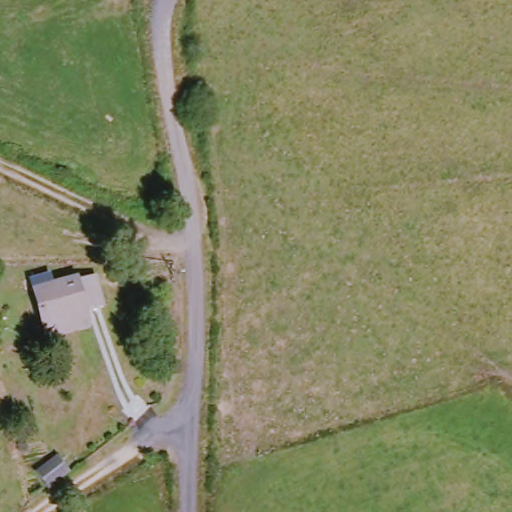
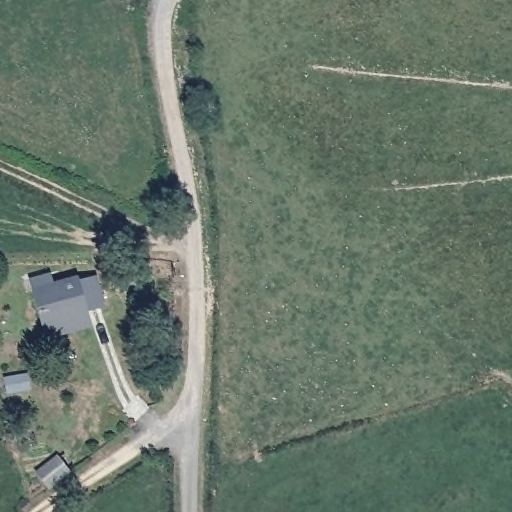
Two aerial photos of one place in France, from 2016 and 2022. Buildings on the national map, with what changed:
unchanged [(45,336),(41,326),(27,291),(70,274),(71,279),(91,274),(99,299),(83,305),(83,309),(86,320),(45,336)]

